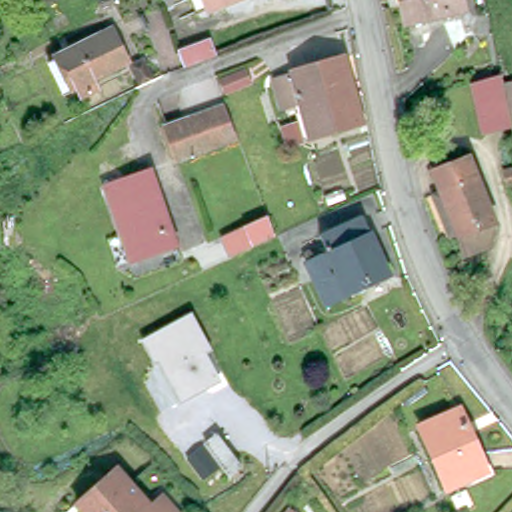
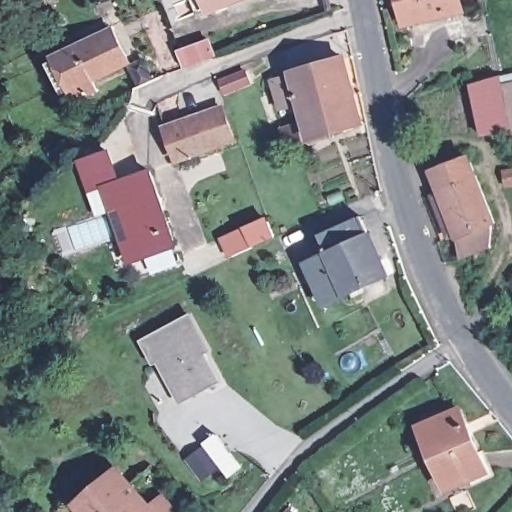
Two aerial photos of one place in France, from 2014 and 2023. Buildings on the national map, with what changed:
unchanged [(205,0),(219,0),(207,5),(205,0)]
unchanged [(392,0),(461,0),(463,19),(397,26),(392,0)]
unchanged [(78,90),(71,80),(68,82),(49,50),(108,20),(125,54),(89,71),(95,81),(78,90)]
unchanged [(198,49),(213,44),(218,55),(209,59),(203,61),(170,75),(163,62),(184,55),(198,49)]
unchanged [(277,109),(267,77),(288,71),(287,68),(339,52),(359,119),(304,134),(296,104),(277,109)]
unchanged [(138,53),(147,72),(143,75),(138,77),(128,59),(138,53)]
unchanged [(493,84),(511,80),(512,84),(512,112),(499,115),(502,125),(477,130),(467,77),(491,72),(493,84)]
unchanged [(159,127),(202,112),(194,89),(210,82),(231,140),(171,159),(159,127)]
new [(103,190),(88,195),(78,160),(108,149),(119,176),(101,184),(103,190)]
unchanged [(459,234),(456,227),(447,230),(424,170),(460,157),(491,244),(454,256),(459,234)]
unchanged [(172,242),(128,257),(101,184),(145,169),(172,242)]
unchanged [(388,276),(324,305),(304,255),(320,245),(316,233),(359,212),(388,276)]
unchanged [(266,215),(276,239),(228,260),(220,237),(266,215)]
unchanged [(213,353),(208,357),(222,384),(179,406),(158,365),(153,367),(138,340),(191,312),(213,353)]
unchanged [(459,410),(488,472),(447,490),(420,427),(459,410)]
unchanged [(243,466),(233,474),(207,443),(218,435),(243,466)]
unchanged [(202,465),(189,475),(179,462),(193,452),(202,465)]
unchanged [(162,495),(176,512),(71,512),(69,509),(118,466),(149,505),(162,495)]

